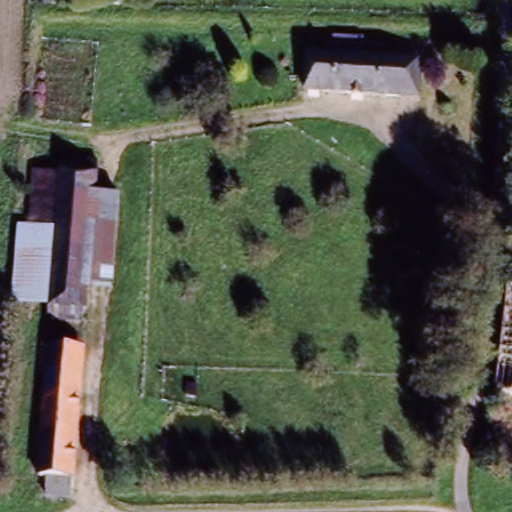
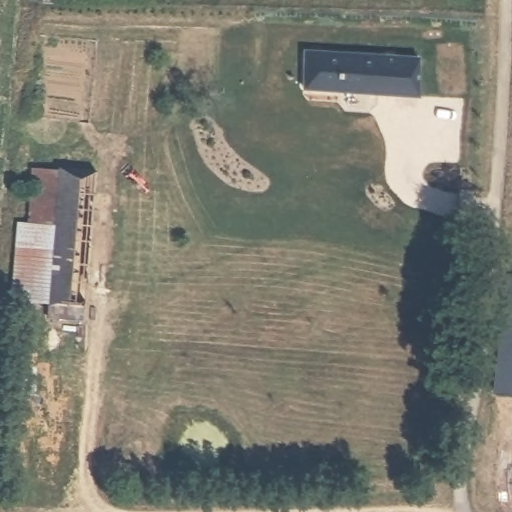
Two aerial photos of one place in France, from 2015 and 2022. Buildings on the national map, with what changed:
unchanged [(49,0),(127,0),(127,3),(49,0)]
unchanged [(308,88),(311,53),(339,54),(340,42),(360,43),(359,55),(425,59),(422,95),(308,88)]
unchanged [(80,310),(79,323),(46,320),(47,303),(52,230),(24,229),(28,170),(56,173),(57,159),(97,161),(96,176),(95,195),(87,286),(85,312),(80,310)]
unchanged [(95,195),(117,198),(110,288),(87,286),(95,195)]
unchanged [(47,303),(8,300),(14,228),(24,229),(52,230),(47,303)]
demolished [(502,380),(511,274),(512,274),(512,382),(502,380)]
new [(512,290),(512,398),(495,396),(501,357),(506,289),(512,290)]
unchanged [(52,493),(54,474),(49,474),(57,371),(52,370),(55,344),(92,348),(90,373),(82,477),(80,495),(52,493)]

